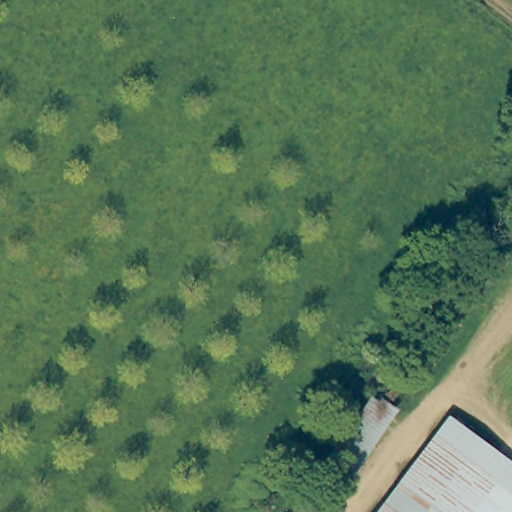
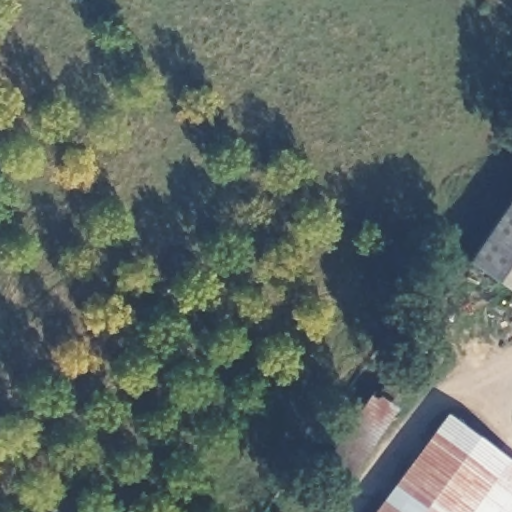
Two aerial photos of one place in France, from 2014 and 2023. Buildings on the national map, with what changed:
new [(512,198),(512,291),(468,262),(512,198)]
unchanged [(393,361),(415,375),(354,469),(332,454),(393,361)]
unchanged [(512,512),(375,512),(447,415),(512,463),(512,512)]

